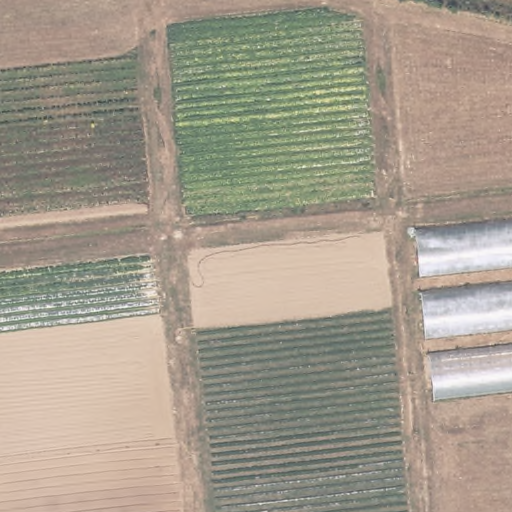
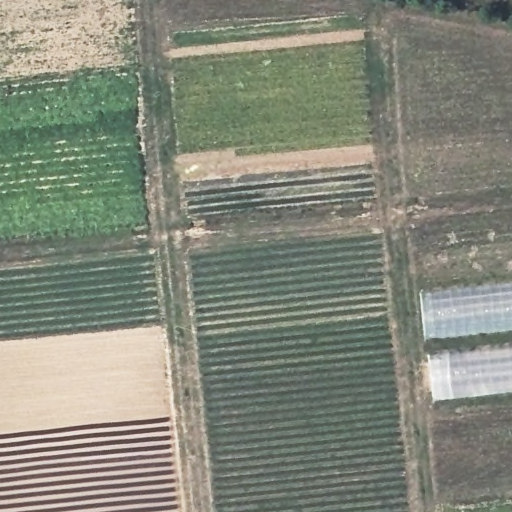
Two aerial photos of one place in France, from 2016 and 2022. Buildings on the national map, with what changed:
demolished [(512,267),(420,278),(416,230),(512,221),(512,267)]
unchanged [(512,330),(425,339),(421,292),(512,283),(512,330)]
unchanged [(512,393),(433,402),(429,353),(512,344),(512,393)]

